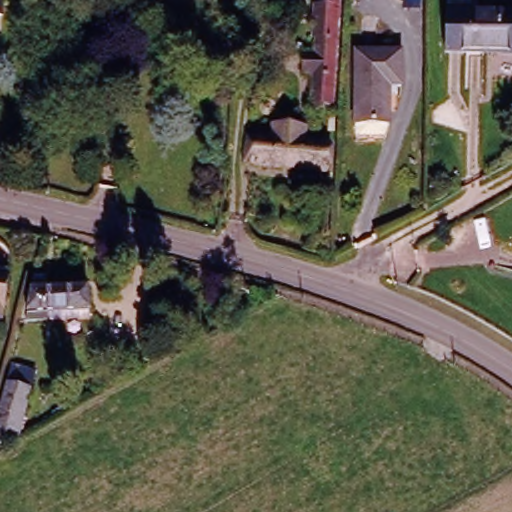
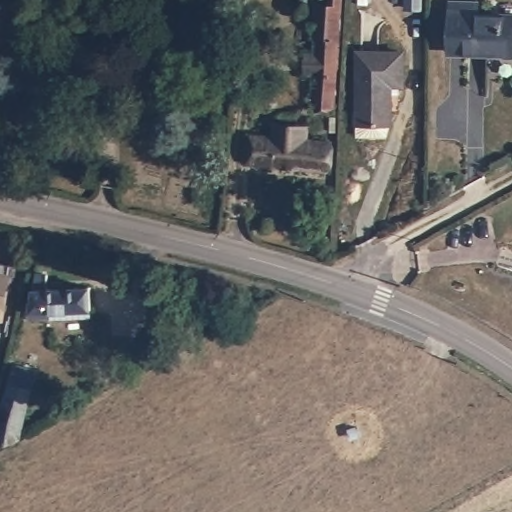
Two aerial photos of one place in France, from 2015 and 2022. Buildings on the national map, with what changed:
unchanged [(0,13),(0,0),(22,0),(21,13),(0,13)]
unchanged [(319,78),(309,77),(310,59),(320,59),(321,42),(318,42),(320,15),(331,16),(332,0),(344,0),(337,102),(318,101),(319,78)]
unchanged [(407,0),(422,0),(421,9),(406,8),(407,0)]
unchanged [(449,3),(475,3),(475,15),(512,16),(512,53),(462,52),(448,52),(448,34),(449,3)]
unchanged [(351,106),(352,47),(395,49),(395,79),(391,79),(391,89),(384,89),(384,107),(381,119),(351,117),(351,106)]
unchanged [(328,174),(250,166),(252,140),(277,142),(278,129),(297,131),(308,131),(308,144),(331,147),(328,174)]
unchanged [(53,318),(33,319),(38,290),(41,290),(41,273),(52,274),(52,289),(93,287),(95,310),(95,316),(53,318)]
unchanged [(0,318),(0,274),(7,275),(0,318)]
unchanged [(0,442),(0,396),(4,381),(8,363),(31,370),(27,387),(13,438),(0,442)]

